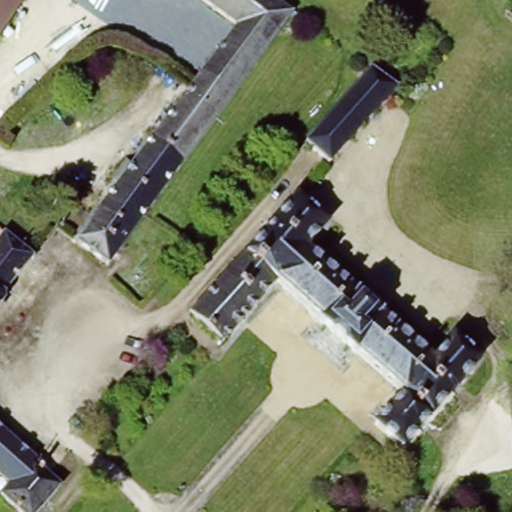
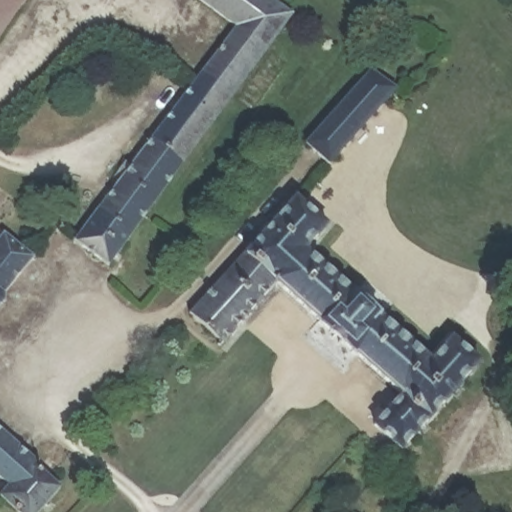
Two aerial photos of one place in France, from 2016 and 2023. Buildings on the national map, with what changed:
unchanged [(0,36),(0,0),(24,0),(0,36)]
unchanged [(233,27),(194,0),(253,0),(233,27)]
unchanged [(295,16),(268,52),(233,27),(253,0),(274,0),(295,16)]
unchanged [(415,14),(406,26),(396,19),(405,7),(415,14)]
unchanged [(268,52),(133,233),(98,210),(233,27),(268,52)]
unchanged [(330,163),(321,156),(303,142),(365,69),(392,89),(330,163)]
unchanged [(322,223),(305,245),(428,349),(443,332),(474,358),(396,455),(365,426),(393,392),(263,283),(228,321),(216,334),(183,310),(283,191),(322,223)]
unchanged [(73,244),(62,236),(80,211),(91,219),(98,210),(133,233),(108,267),(73,244)]
unchanged [(3,230),(0,233),(0,228),(3,230)]
unchanged [(23,258),(0,287),(0,239),(23,258)]
unchanged [(65,489),(45,512),(10,512),(0,503),(0,490),(3,486),(0,484),(0,431),(65,489)]

